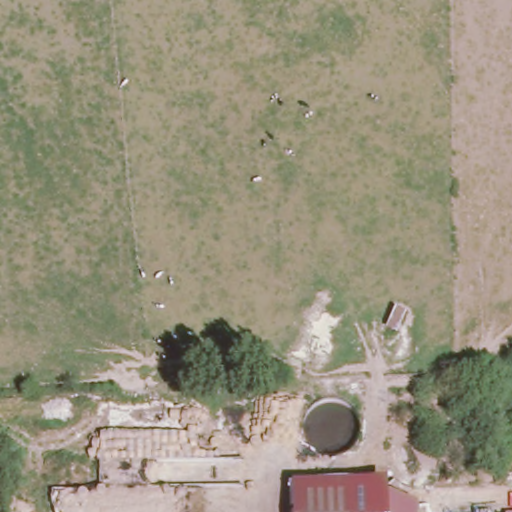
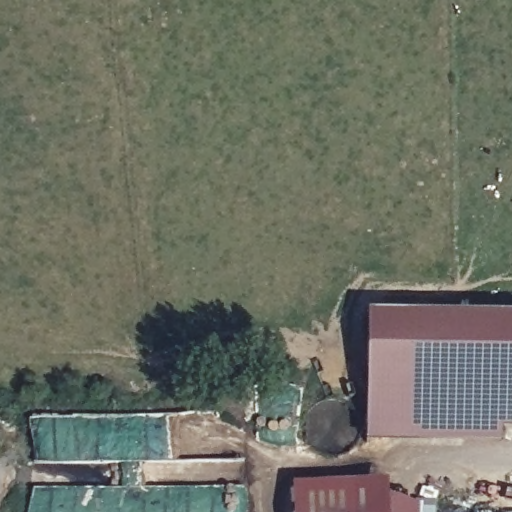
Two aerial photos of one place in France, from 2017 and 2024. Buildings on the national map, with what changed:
new [(367,442),(369,312),(512,314),(512,427),(501,427),(501,444),(367,442)]
unchanged [(387,481),(387,492),(417,506),(417,512),(293,512),(292,484),(387,481)]

